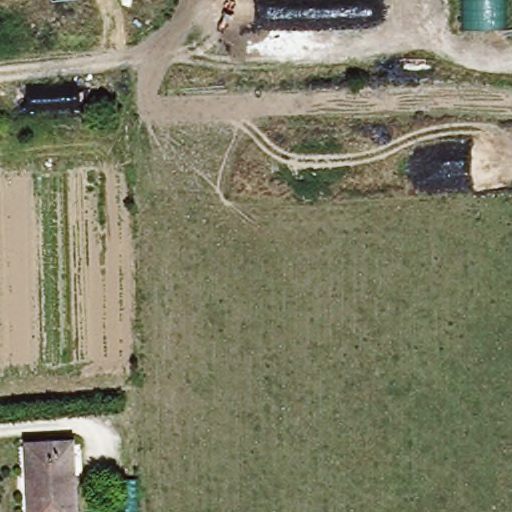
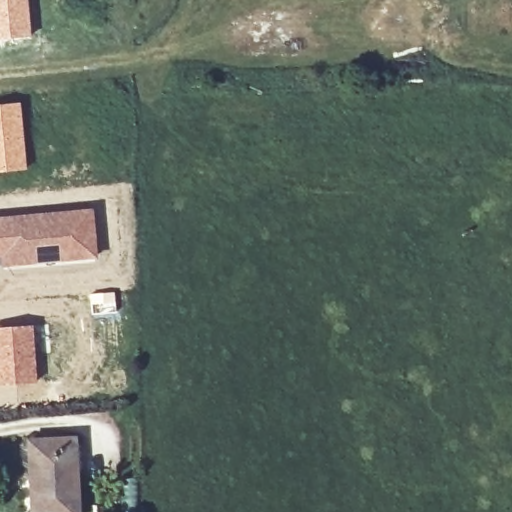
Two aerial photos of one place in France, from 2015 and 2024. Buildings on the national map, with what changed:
new [(0,39),(0,0),(27,0),(31,36),(0,39)]
demolished [(512,0),(512,28),(462,28),(462,0),(512,0)]
new [(26,169),(0,172),(0,103),(20,101),(26,169)]
new [(98,258),(1,266),(0,258),(0,216),(93,207),(98,258)]
new [(115,291),(118,312),(92,316),(89,293),(115,291)]
new [(36,382),(0,385),(0,327),(33,324),(36,382)]
unchanged [(71,437),(75,512),(30,512),(26,440),(71,437)]

